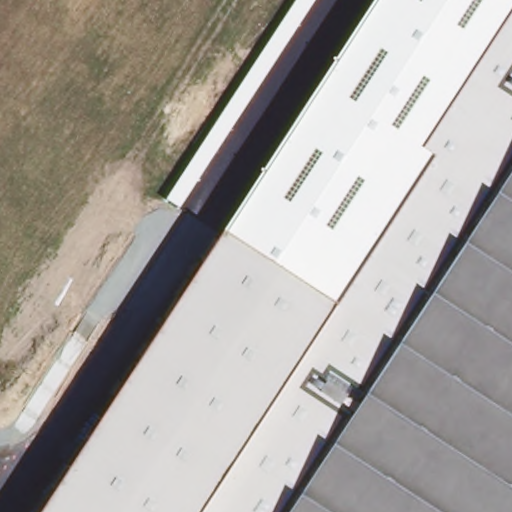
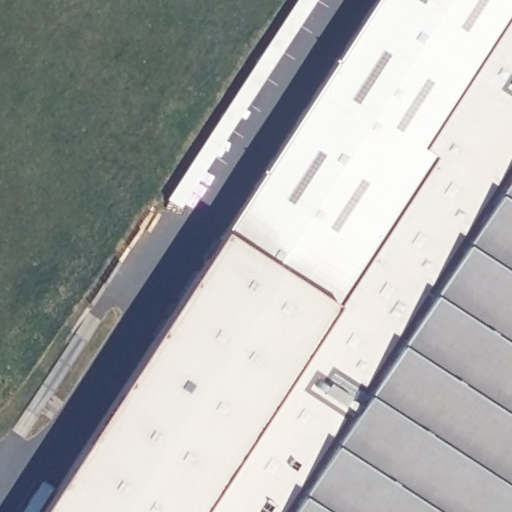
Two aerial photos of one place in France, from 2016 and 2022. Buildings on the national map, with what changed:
unchanged [(167,199),(296,0),(315,0),(179,209),(167,199)]
unchanged [(512,12),(418,155),(430,162),(342,295),(287,258),(230,221),(376,0),(512,0),(512,12)]
unchanged [(287,258),(342,295),(430,162),(418,155),(512,12),(512,512),(38,512),(230,221),(287,258)]

